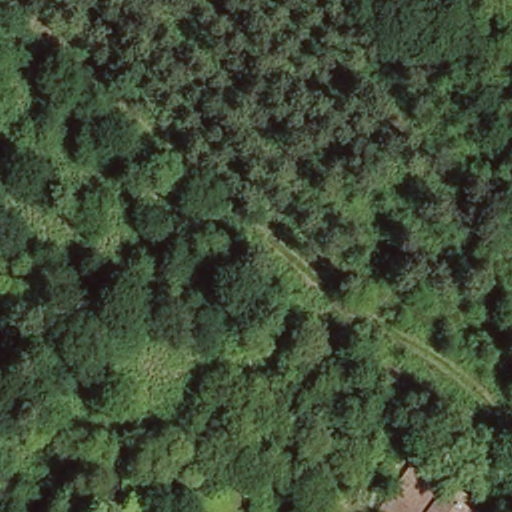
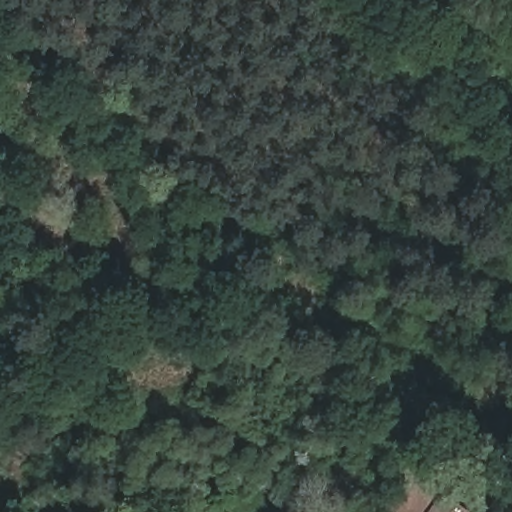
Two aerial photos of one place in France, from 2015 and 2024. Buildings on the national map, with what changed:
unchanged [(474,509),(472,512),(402,512),(425,478),(474,509)]

